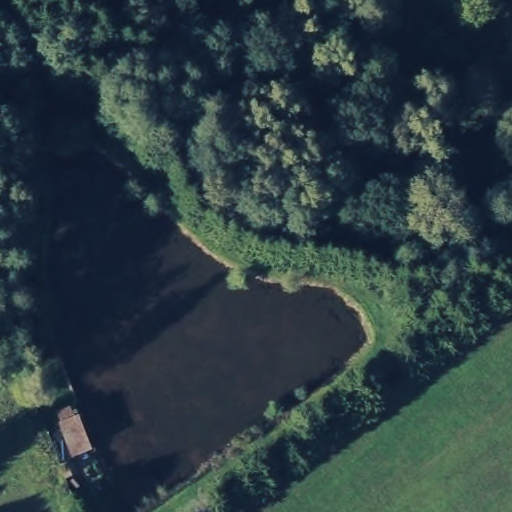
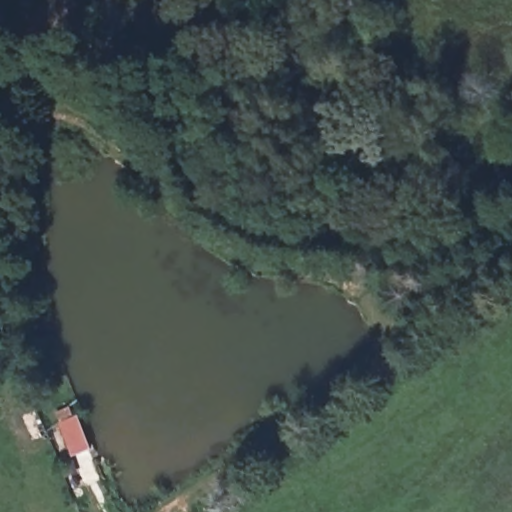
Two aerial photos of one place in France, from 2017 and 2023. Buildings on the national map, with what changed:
unchanged [(55,427),(62,423),(55,408),(72,401),(90,451),(63,464),(55,427)]

